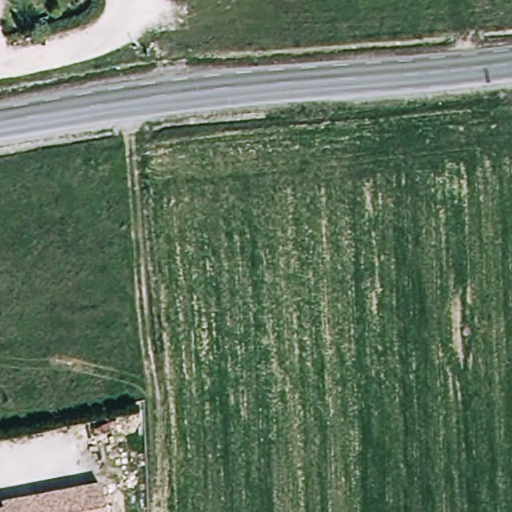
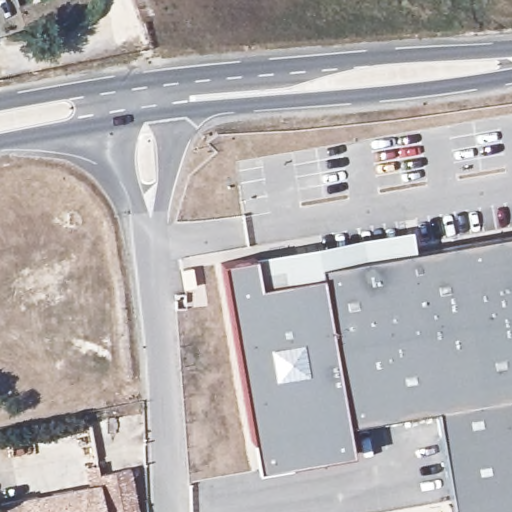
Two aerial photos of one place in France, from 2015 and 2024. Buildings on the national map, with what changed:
new [(253,255),(410,229),(415,251),(415,252),(512,235),(512,512),(452,512),(435,410),(347,426),(352,455),(256,473),(221,264),(253,258),(253,255)]
new [(97,465),(99,474),(130,468),(138,512),(109,512),(103,483),(89,486),(85,468),(97,465)]
unchanged [(5,502),(103,483),(109,512),(0,512),(0,510),(5,509),(5,502)]

